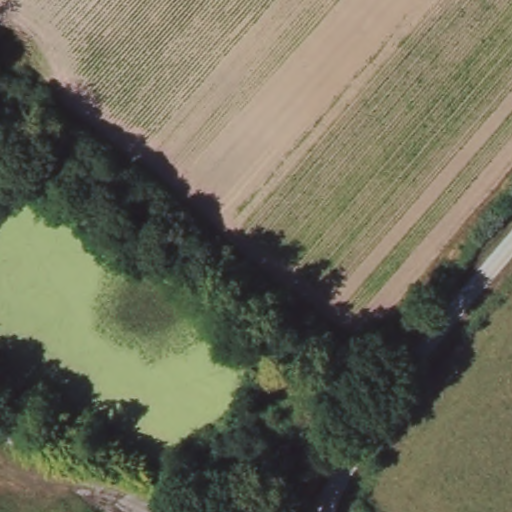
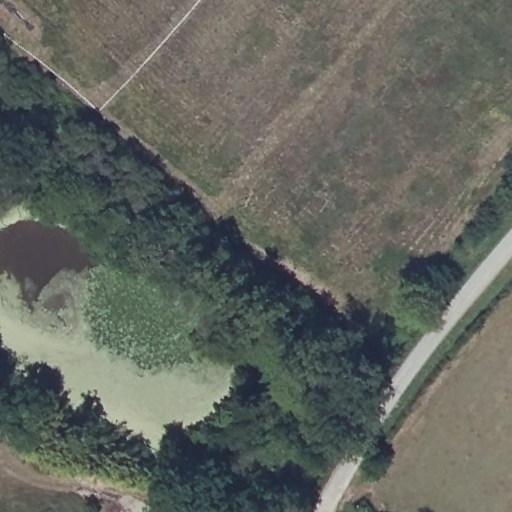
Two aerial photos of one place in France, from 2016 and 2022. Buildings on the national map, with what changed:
unchanged [(216,469),(206,474),(197,458),(208,452),(216,469)]

